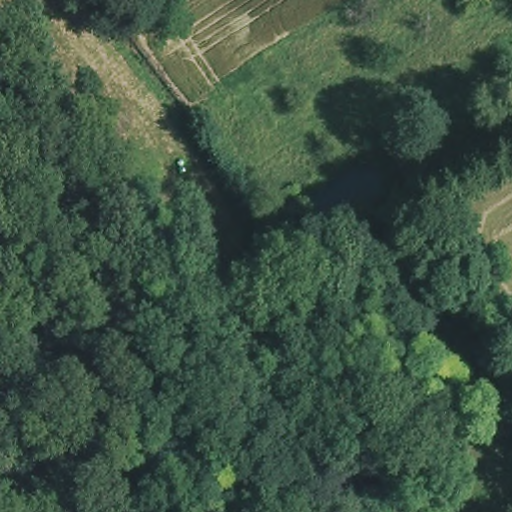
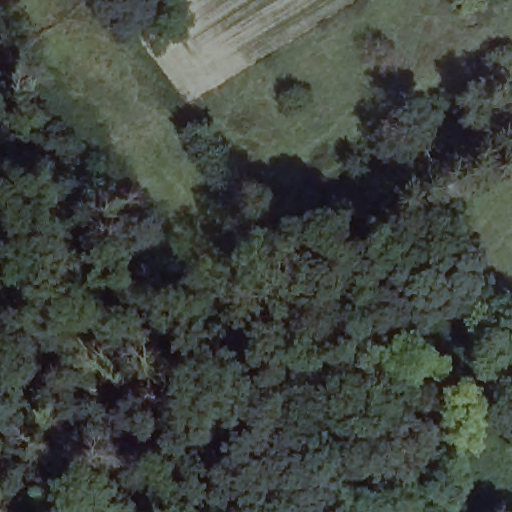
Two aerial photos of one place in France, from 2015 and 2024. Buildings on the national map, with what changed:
unchanged [(388,155),(420,139),(437,167),(405,186),(388,155)]

